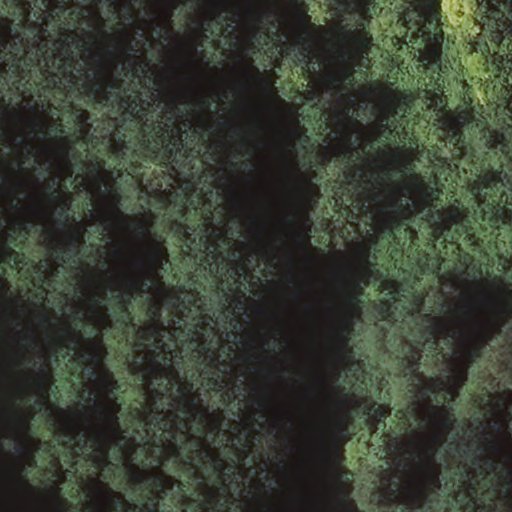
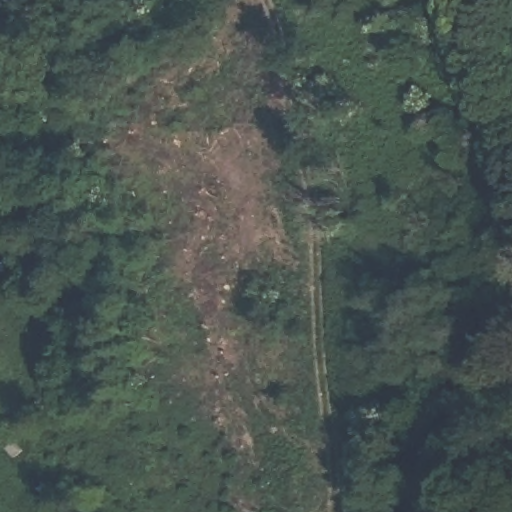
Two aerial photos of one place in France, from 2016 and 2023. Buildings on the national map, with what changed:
unchanged [(41,486),(49,500),(37,505),(31,493),(41,486)]

